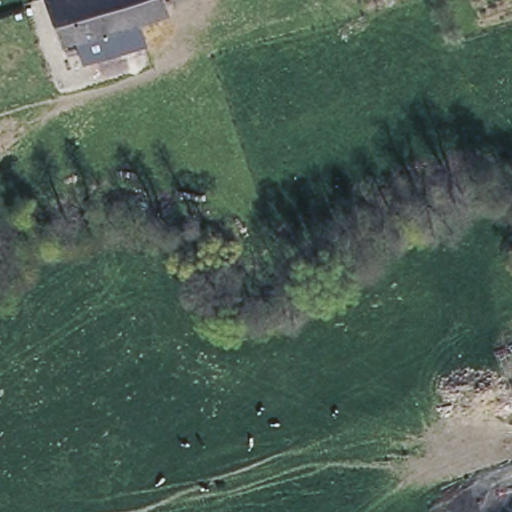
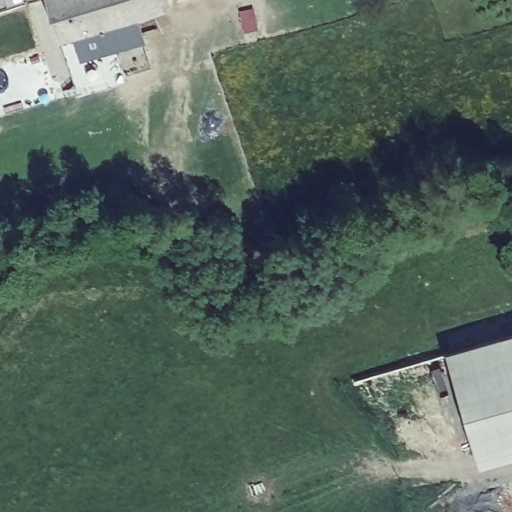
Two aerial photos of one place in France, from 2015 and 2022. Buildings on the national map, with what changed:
unchanged [(65,36),(54,0),(115,0),(120,18),(81,31),(65,36)]
unchanged [(120,18),(115,0),(172,0),(172,2),(141,12),(120,18)]
unchanged [(88,51),(87,51),(81,31),(120,18),(141,12),(148,33),(88,51)]
new [(447,353),(512,334),(512,460),(481,469),(447,353)]

